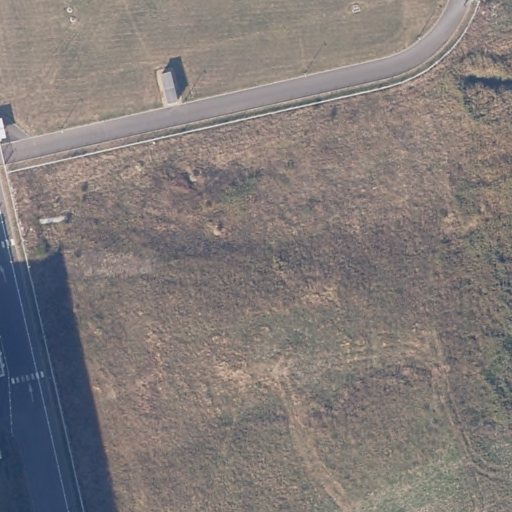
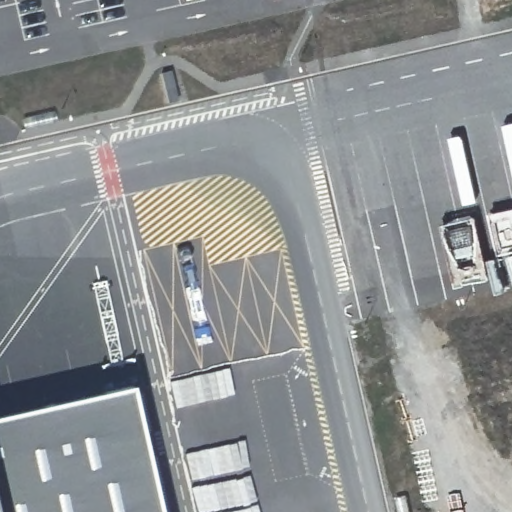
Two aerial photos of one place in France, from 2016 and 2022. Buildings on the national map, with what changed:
new [(132,385),(159,512),(0,512),(0,417),(132,385)]

